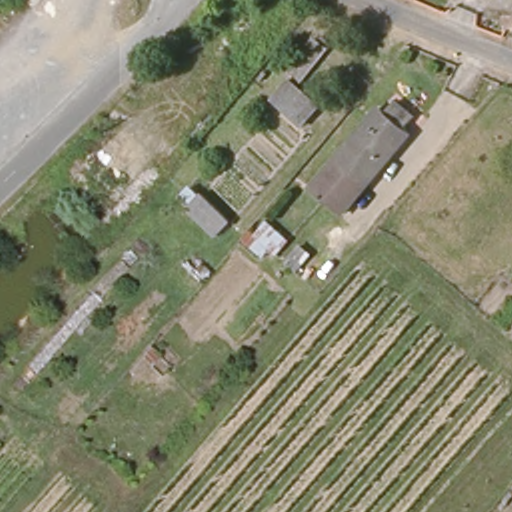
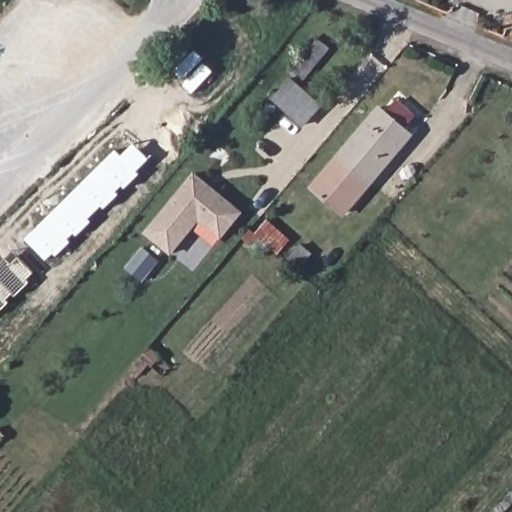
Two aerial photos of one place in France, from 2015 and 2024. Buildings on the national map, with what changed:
unchanged [(510,17),(512,17),(512,32),(511,32),(510,17)]
unchanged [(332,52),(307,83),(297,74),(321,44),(332,52)]
unchanged [(326,109),(309,128),(279,101),(295,82),(326,109)]
unchanged [(341,216),(311,190),(378,111),(384,117),(395,104),(412,118),(402,132),(407,137),(341,216)]
new [(221,239),(198,221),(171,256),(143,232),(194,171),(244,211),(221,239)]
demolished [(228,215),(215,228),(185,201),(198,187),(228,215)]
unchanged [(256,231),(268,220),(291,239),(272,261),(243,235),(249,227),(256,231)]
unchanged [(133,368),(126,362),(144,341),(150,347),(133,368)]

